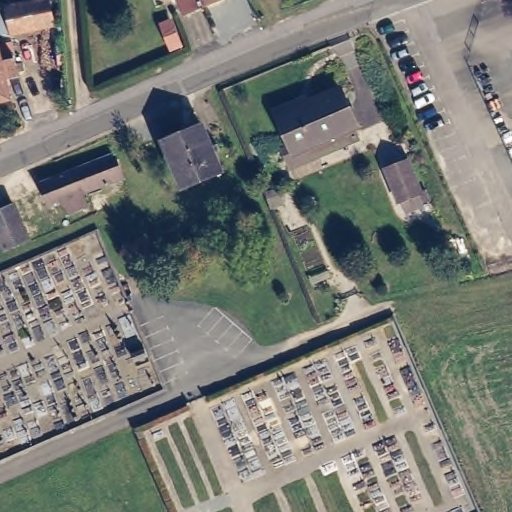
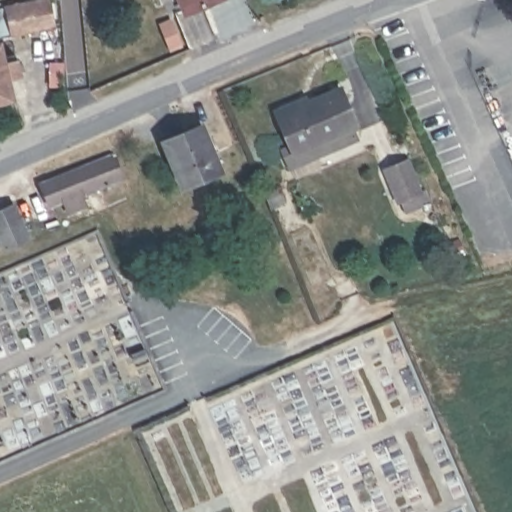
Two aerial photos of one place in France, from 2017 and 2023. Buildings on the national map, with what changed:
unchanged [(48,0),(54,24),(14,33),(8,5),(37,0),(48,0)]
unchanged [(178,0),(202,0),(181,8),(178,0)]
unchanged [(4,53),(6,63),(12,61),(15,79),(3,82),(7,103),(0,104),(0,53),(4,53)]
unchanged [(296,136),(282,106),(279,99),(306,87),(310,94),(342,79),(359,115),(356,117),(362,129),(294,160),(289,148),(286,141),(296,136)]
unchanged [(161,146),(197,131),(212,167),(215,175),(180,190),(176,183),(161,146)]
unchanged [(111,187),(47,209),(39,189),(109,164),(106,155),(123,151),(130,179),(117,185),(118,188),(113,190),(111,187)]
unchanged [(404,197),(400,199),(388,169),(404,163),(409,160),(422,190),(429,187),(433,200),(423,204),(409,210),(404,197)]
unchanged [(15,204),(29,236),(4,246),(0,237),(0,210),(15,204)]

